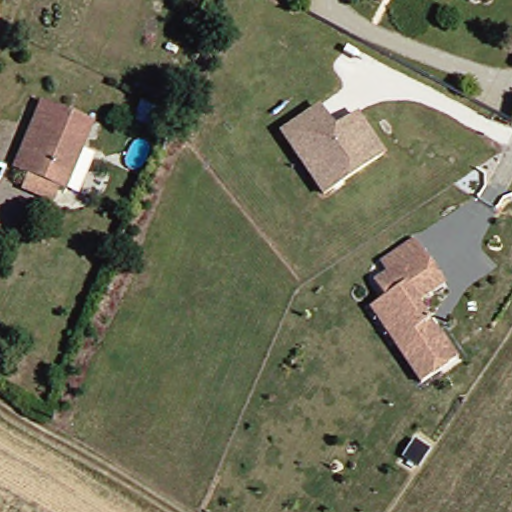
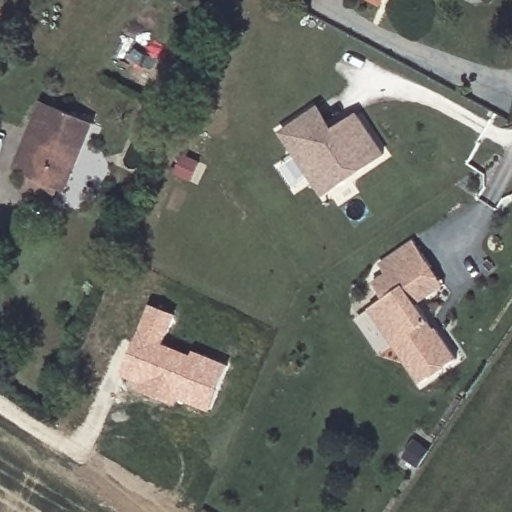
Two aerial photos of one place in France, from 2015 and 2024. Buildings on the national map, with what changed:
unchanged [(19,191),(25,175),(13,170),(9,168),(36,101),(46,106),(89,124),(60,190),(54,188),(47,203),(19,191)]
unchanged [(286,132),(310,116),(323,108),(338,131),(362,115),(389,154),(328,195),(315,176),(302,156),(286,132)]
unchanged [(441,330),(461,360),(426,384),(399,344),(375,309),(385,302),(389,299),(378,283),(391,275),(385,265),(420,241),(438,268),(450,285),(437,294),(421,304),(434,322),(440,331),(441,330)]
new [(144,383),(125,375),(151,304),(178,314),(165,343),(193,354),(195,349),(231,364),(212,411),(182,398),(179,405),(141,390),(144,383)]

